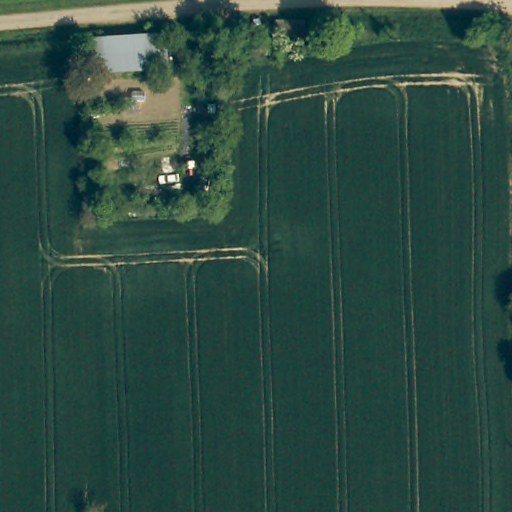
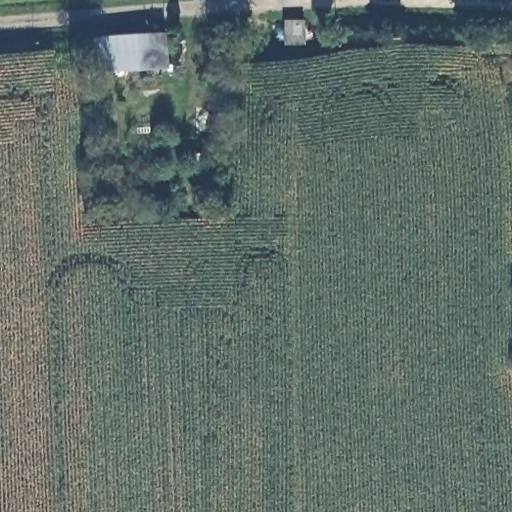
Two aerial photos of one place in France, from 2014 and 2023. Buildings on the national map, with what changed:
unchanged [(287,16),(307,16),(307,20),(304,39),(283,37),(287,21),(287,16)]
unchanged [(165,69),(86,76),(82,40),(82,35),(160,27),(161,33),(165,69)]

